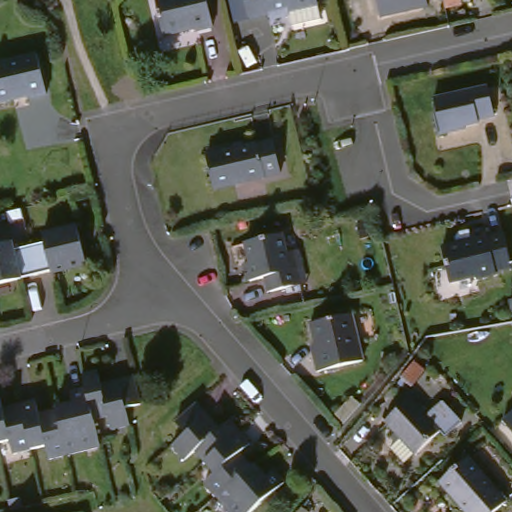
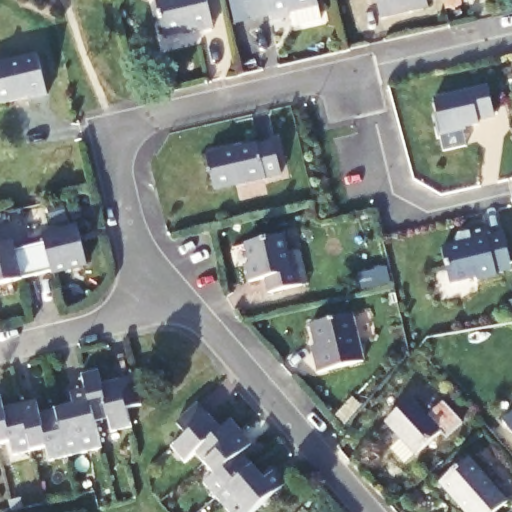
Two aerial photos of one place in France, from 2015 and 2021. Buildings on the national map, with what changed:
unchanged [(190,0),(201,0),(210,40),(159,50),(149,7),(190,0)]
unchanged [(314,15),(245,28),(239,0),(311,0),(314,15)]
unchanged [(428,15),(377,25),(372,0),(424,0),(428,15)]
unchanged [(49,105),(1,120),(0,118),(0,77),(36,66),(49,105)]
unchanged [(486,96),(491,123),(458,130),(459,140),(436,144),(429,108),(486,96)]
unchanged [(279,182),(214,195),(204,160),(270,146),(279,182)]
unchanged [(468,245),(466,237),(483,234),(485,241),(499,239),(508,280),(449,292),(439,250),(468,245)]
unchanged [(7,250),(10,260),(43,251),(41,244),(73,236),(84,272),(0,296),(0,252),(7,250)]
unchanged [(296,275),(301,275),(304,290),(270,297),(266,282),(246,286),(243,270),(255,268),(250,248),(288,240),(296,275)]
unchanged [(356,327),(363,358),(316,367),(309,335),(356,327)]
unchanged [(106,423),(91,426),(98,453),(49,463),(45,452),(16,458),(13,445),(0,448),(0,401),(3,400),(7,415),(33,410),(36,420),(71,412),(68,398),(81,395),(77,382),(93,378),(97,391),(129,384),(136,410),(123,413),(128,430),(129,433),(125,435),(111,436),(106,423)]
unchanged [(436,413),(458,440),(444,451),(438,444),(414,463),(381,425),(407,405),(423,423),(436,413)]
unchanged [(249,452),(239,461),(262,486),(274,476),(284,487),(257,512),(224,512),(204,491),(210,485),(189,462),(181,470),(169,456),(180,448),(169,435),(183,422),(193,414),(219,441),(230,431),(249,452)]
unchanged [(512,424),(512,441),(504,431),(512,424)]
unchanged [(502,512),(452,512),(434,492),(468,465),(505,510),(502,512)]

